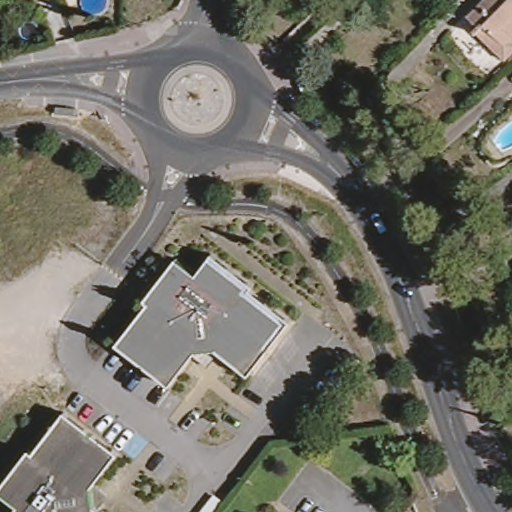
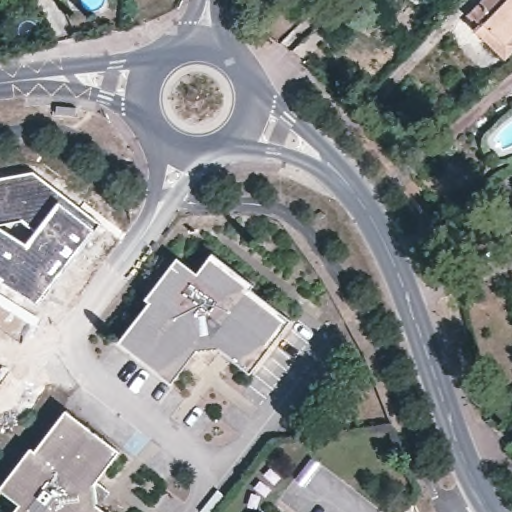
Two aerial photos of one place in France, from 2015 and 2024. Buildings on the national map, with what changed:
unchanged [(245,0),(250,16),(244,19),(237,3),(243,0),(245,0)]
unchanged [(479,31),(484,26),(473,15),(488,0),(512,0),(512,57),(509,60),(479,31)]
new [(33,170),(97,226),(38,307),(31,302),(0,283),(0,176),(33,170)]
unchanged [(199,267),(214,249),(254,279),(252,284),(291,314),(250,367),(218,343),(196,347),(172,378),(120,338),(151,298),(146,294),(160,276),(178,252),(199,267)]
unchanged [(38,447),(68,407),(121,447),(98,480),(114,491),(104,504),(114,512),(10,512),(19,499),(1,485),(33,443),(38,447)]

